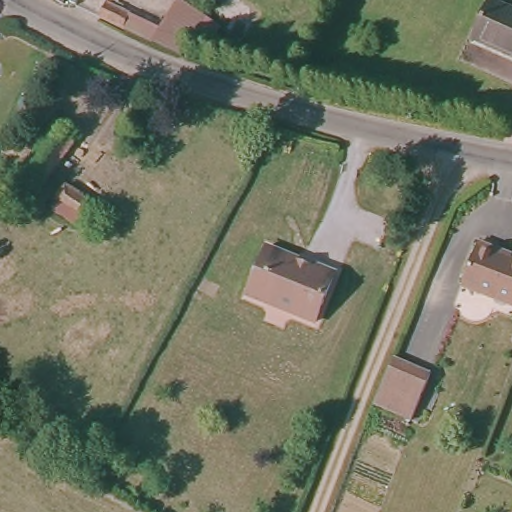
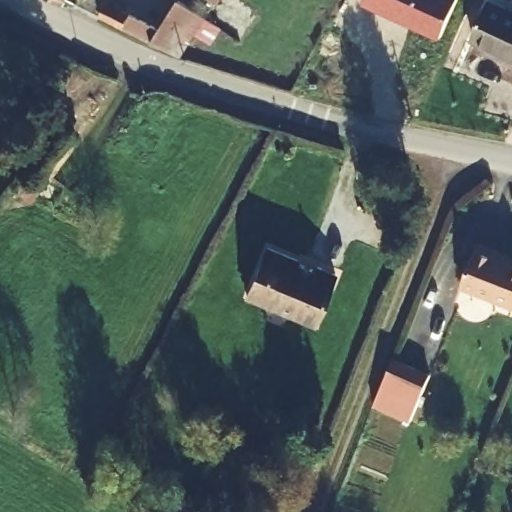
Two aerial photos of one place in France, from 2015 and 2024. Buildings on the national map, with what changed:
unchanged [(65,0),(63,2),(60,0),(65,0)]
unchanged [(211,0),(213,0),(213,1),(211,0)]
new [(361,2),(363,0),(459,0),(441,37),(361,2)]
unchanged [(110,3),(165,31),(182,4),(207,21),(183,57),(103,16),(110,3)]
unchanged [(488,6),(512,18),(512,66),(469,43),(488,6)]
unchanged [(55,124),(76,138),(30,202),(10,188),(55,124)]
unchanged [(93,205),(81,222),(54,204),(64,187),(93,205)]
unchanged [(502,248),(501,255),(512,259),(512,304),(462,285),(479,241),(502,248)]
unchanged [(267,246),(294,256),(296,261),(311,267),(320,264),(334,269),(311,321),(291,313),(286,303),(273,297),(263,301),(246,293),(267,246)]
unchanged [(431,374),(411,418),(375,402),(395,357),(431,374)]

